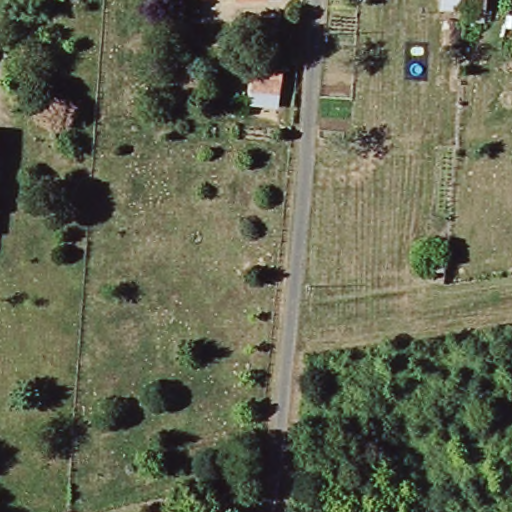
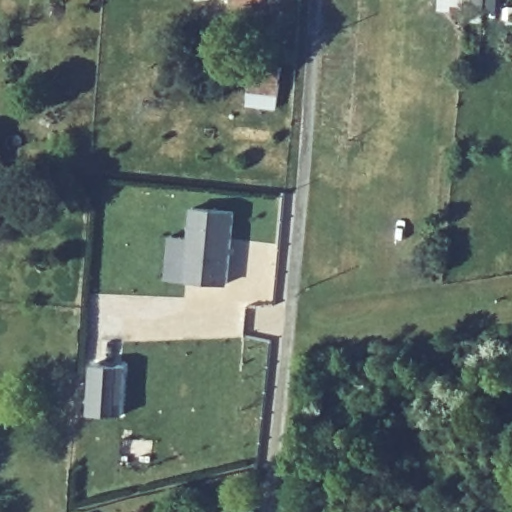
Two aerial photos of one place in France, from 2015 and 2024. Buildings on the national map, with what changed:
unchanged [(437,8),(438,0),(481,0),(480,11),(461,9),(437,8)]
unchanged [(249,81),(251,56),(280,59),(278,84),(249,81)]
new [(229,283),(187,280),(191,207),(235,209),(229,283)]
new [(124,416),(89,414),(90,363),(128,364),(124,416)]

